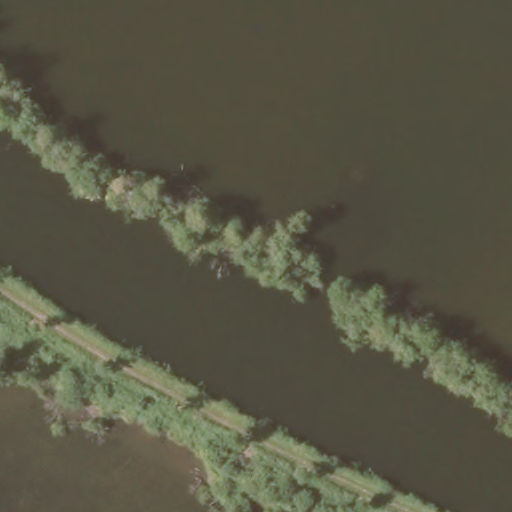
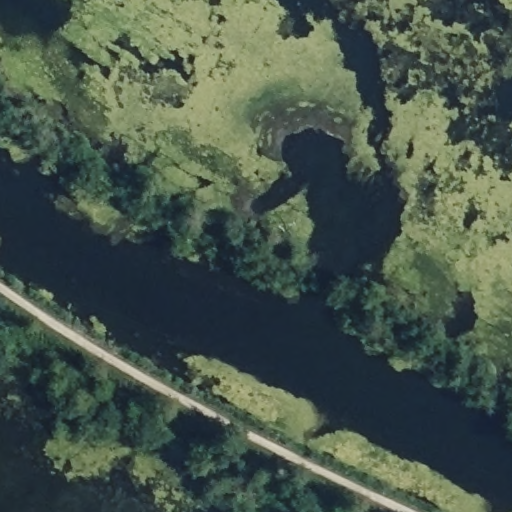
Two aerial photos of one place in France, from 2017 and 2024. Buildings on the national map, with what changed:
unchanged [(343,188),(353,178),(360,185),(349,195),(343,188)]

